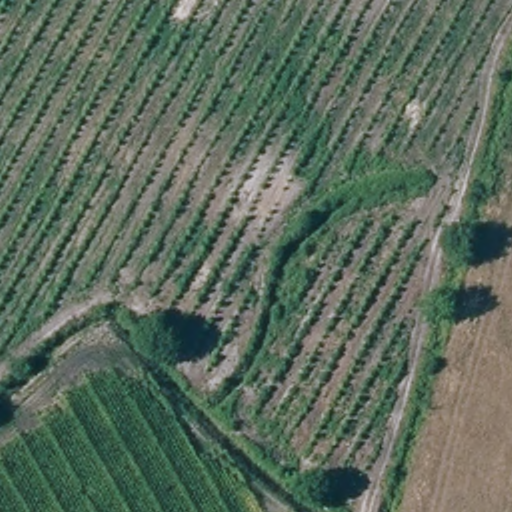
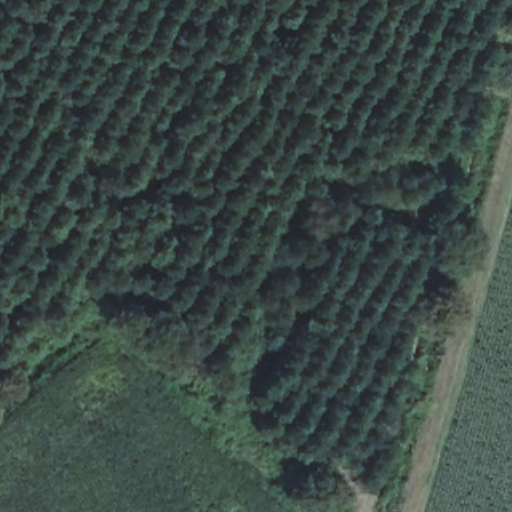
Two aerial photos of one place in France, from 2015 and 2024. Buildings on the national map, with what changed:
[]

